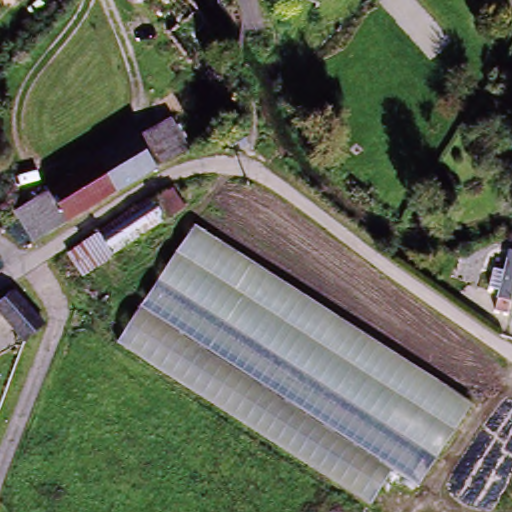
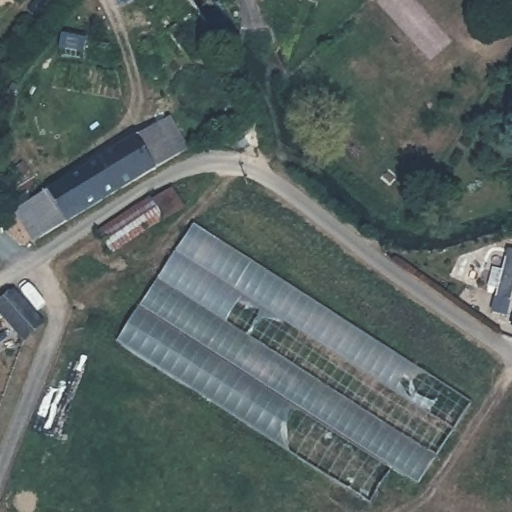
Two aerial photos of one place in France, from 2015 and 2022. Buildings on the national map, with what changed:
unchanged [(20,209),(171,119),(193,150),(39,241),(20,209)]
unchanged [(100,235),(148,206),(166,196),(181,216),(174,221),(163,230),(114,259),(100,235)]
unchanged [(474,402),(421,492),(391,472),(372,505),(115,346),(194,225),(474,402)]
unchanged [(11,295),(38,325),(20,340),(0,318),(0,304),(11,295)]

